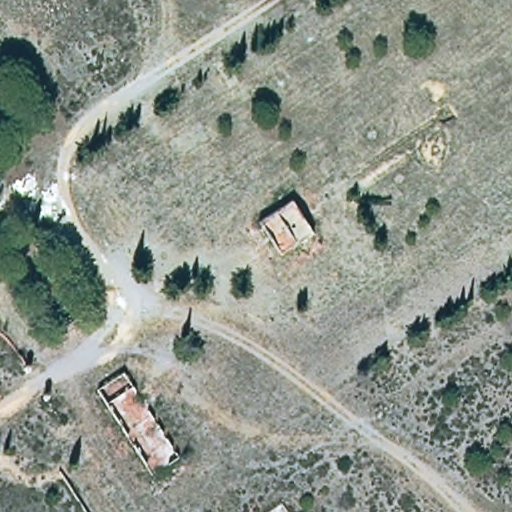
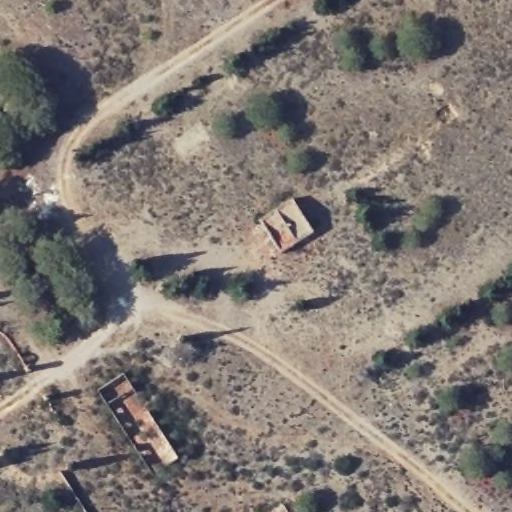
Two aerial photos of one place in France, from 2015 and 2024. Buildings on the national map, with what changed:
unchanged [(290,194),(310,226),(280,247),(257,213),(290,194)]

